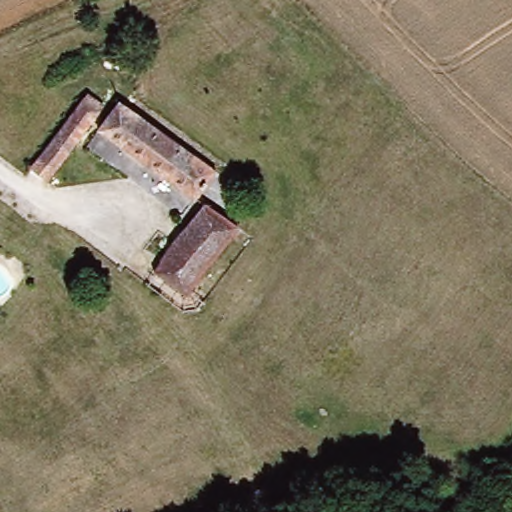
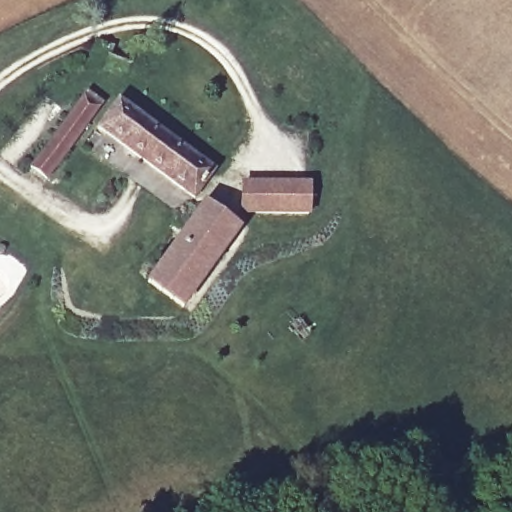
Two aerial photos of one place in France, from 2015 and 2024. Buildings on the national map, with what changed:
unchanged [(45,182),(31,170),(94,84),(112,95),(45,182)]
unchanged [(107,134),(120,114),(127,101),(148,115),(221,161),(201,194),(128,147),(107,134)]
new [(311,184),(310,215),(238,214),(238,182),(311,184)]
unchanged [(242,223),(193,294),(158,270),(208,199),(242,223)]

